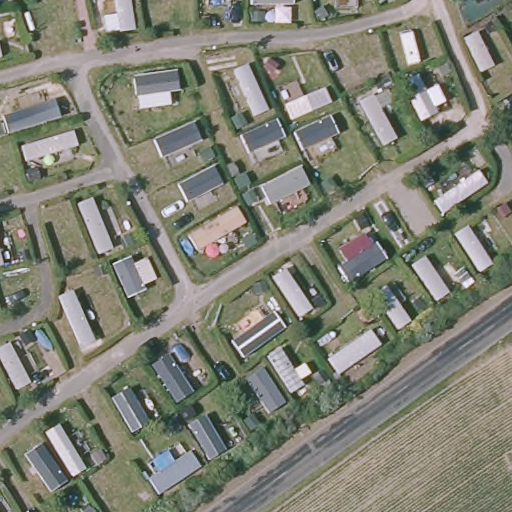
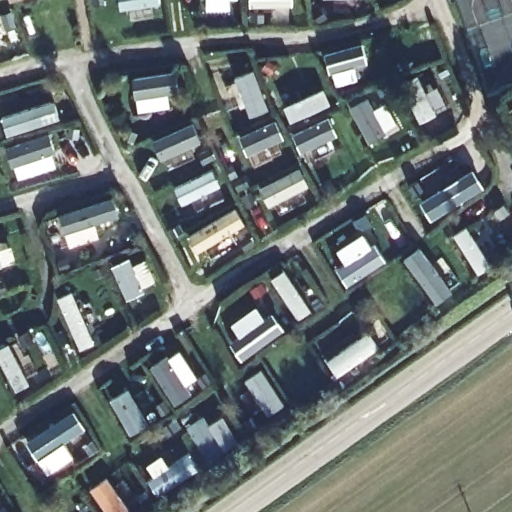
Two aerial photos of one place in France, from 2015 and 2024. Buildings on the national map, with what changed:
unchanged [(14,0),(21,0),(15,3),(14,0)]

